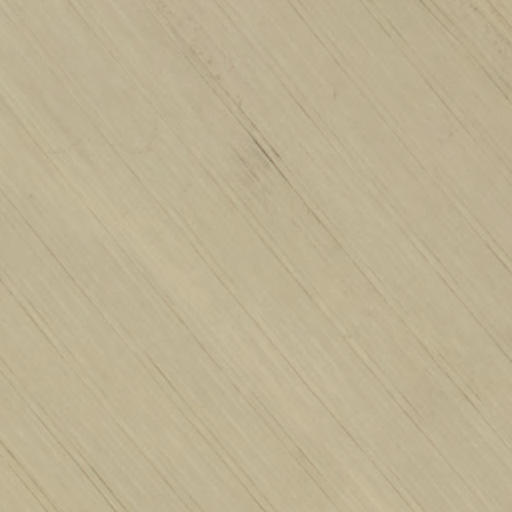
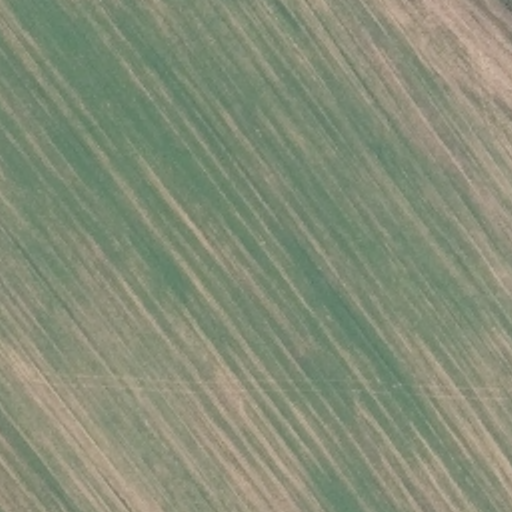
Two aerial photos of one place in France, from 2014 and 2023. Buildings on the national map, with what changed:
[]

